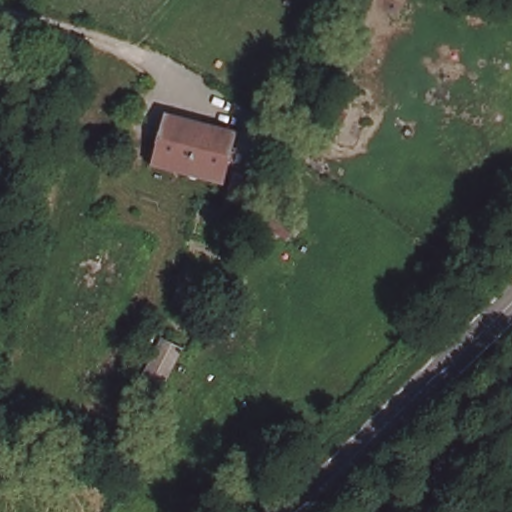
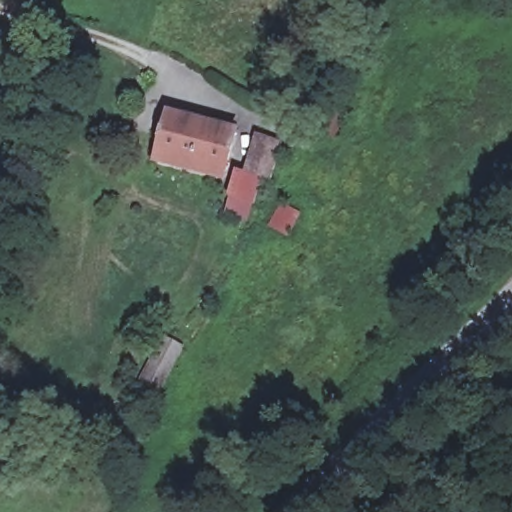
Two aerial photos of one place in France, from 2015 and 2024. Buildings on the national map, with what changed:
unchanged [(220,177),(154,159),(166,116),(232,132),(220,177)]
new [(257,134),(285,145),(271,184),(262,181),(253,207),(248,223),(225,215),(231,200),(227,197),(235,170),(244,172),(257,134)]
unchanged [(160,396),(139,387),(165,337),(185,347),(160,396)]

